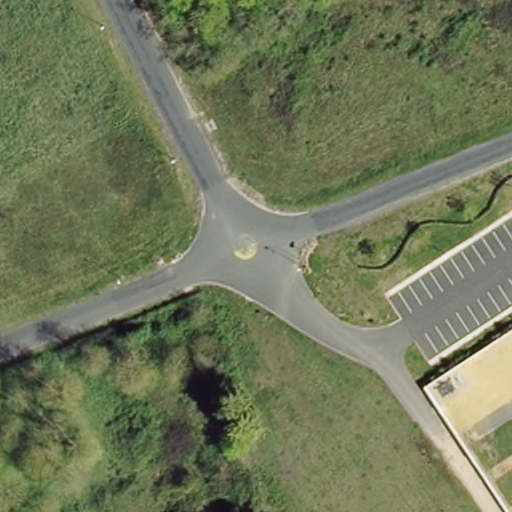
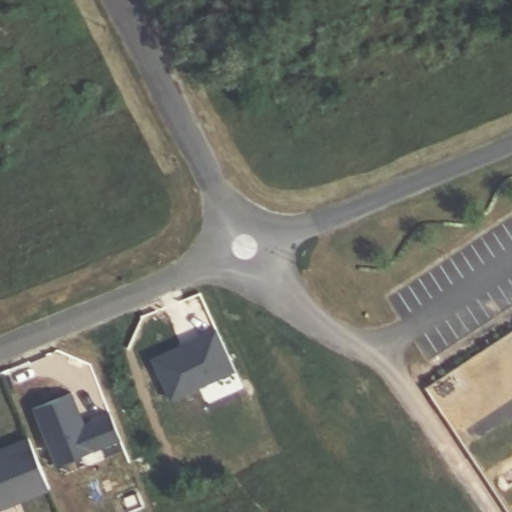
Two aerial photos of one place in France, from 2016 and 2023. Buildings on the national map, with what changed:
new [(218,329),(220,335),(235,369),(172,399),(154,359),(181,346),(218,329)]
new [(71,393),(84,425),(92,422),(91,420),(109,413),(120,439),(56,465),(33,408),(71,393)]
new [(28,439),(30,443),(49,489),(0,509),(0,450),(28,439)]

